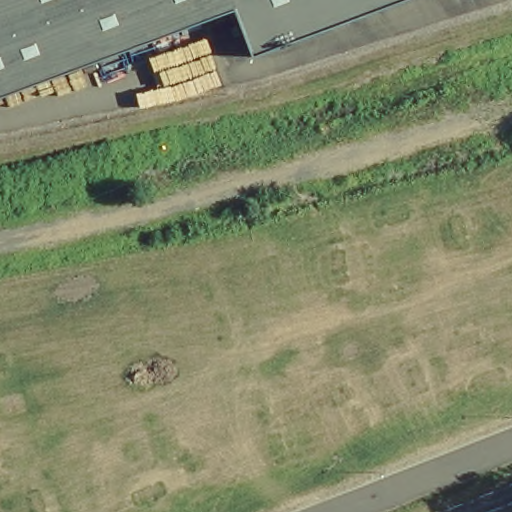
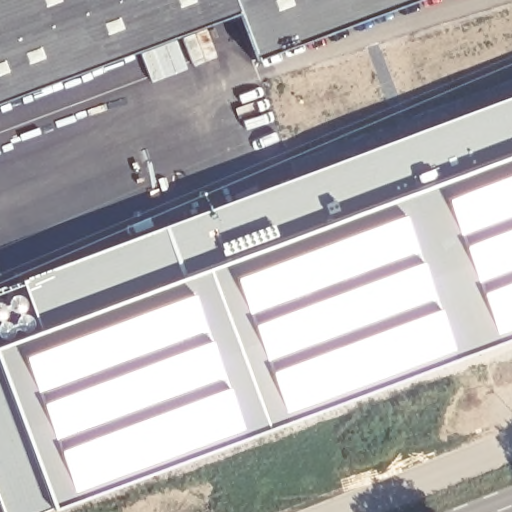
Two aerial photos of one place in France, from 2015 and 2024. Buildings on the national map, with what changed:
unchanged [(264,47),(242,0),(0,86),(0,0),(391,0),(264,47)]
new [(39,512),(0,512),(0,287),(512,96),(512,337),(39,512)]

